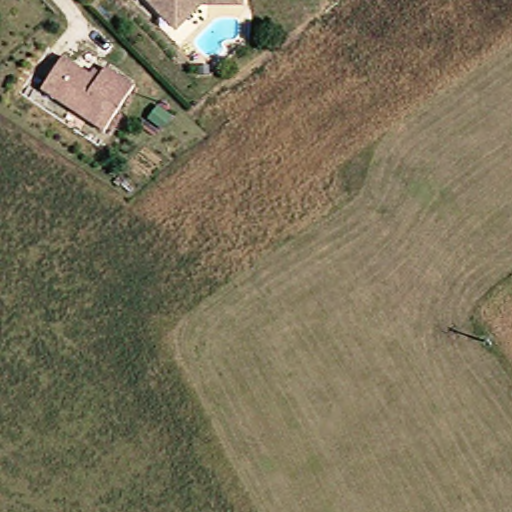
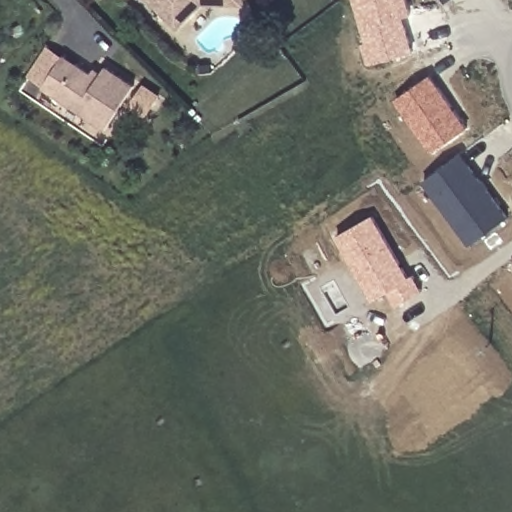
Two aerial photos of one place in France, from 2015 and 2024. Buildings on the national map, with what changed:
new [(367,42),(355,0),(409,0),(413,15),(405,17),(415,51),(369,64),(363,44),(367,42)]
unchanged [(134,87),(104,130),(41,88),(64,57),(90,75),(94,70),(101,75),(106,67),(134,87)]
new [(468,127),(432,153),(395,100),(432,75),(468,127)]
unchanged [(161,129),(150,119),(160,107),(172,117),(161,129)]
new [(510,217),(469,245),(424,182),(464,153),(510,217)]
new [(389,292),(372,301),(335,236),(374,214),(410,277),(415,274),(424,290),(397,306),(389,292)]
new [(511,265),(512,263),(512,267),(511,265)]

